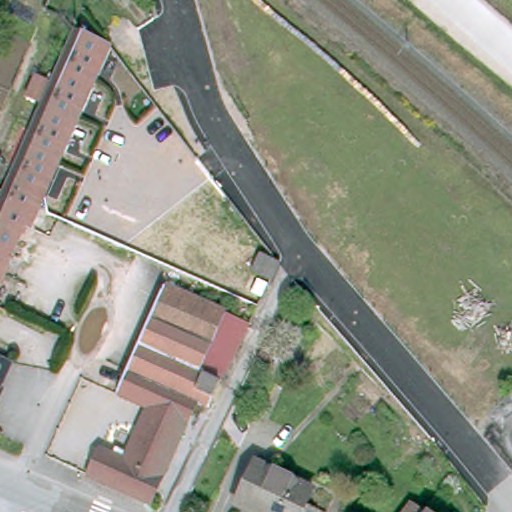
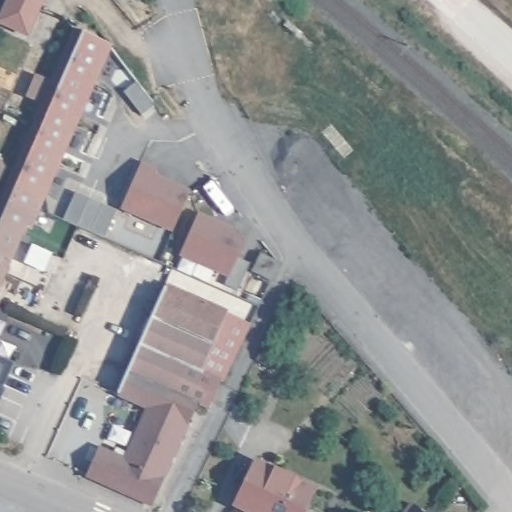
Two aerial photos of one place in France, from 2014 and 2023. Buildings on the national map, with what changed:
new [(0,25),(0,11),(5,0),(44,0),(28,37),(0,25)]
unchanged [(105,74),(68,57),(79,31),(116,48),(105,74)]
unchanged [(13,179),(48,102),(36,97),(43,79),(55,84),(68,57),(105,74),(50,196),(13,179)]
unchanged [(0,174),(0,160),(5,162),(0,174)]
new [(188,187),(171,231),(121,210),(141,161),(158,168),(156,173),(188,187)]
unchanged [(0,296),(3,302),(0,309),(0,189),(7,192),(13,179),(50,196),(38,224),(33,222),(0,296)]
new [(75,192),(115,209),(103,236),(63,218),(75,192)]
new [(244,243),(238,256),(249,262),(238,288),(224,283),(226,277),(178,257),(198,211),(233,226),(244,243)]
unchanged [(261,255),(279,264),(271,280),(253,272),(261,255)]
unchanged [(186,426),(148,409),(117,395),(128,371),(166,289),(249,325),(210,407),(208,410),(196,405),(186,426)]
unchanged [(6,390),(8,390),(0,409),(0,356),(18,364),(6,390)]
unchanged [(101,448),(125,459),(148,409),(186,426),(149,504),(88,477),(101,448)]
unchanged [(313,488),(302,512),(245,512),(235,507),(256,462),(313,488)]
unchanged [(413,503),(424,512),(407,512),(413,503)]

